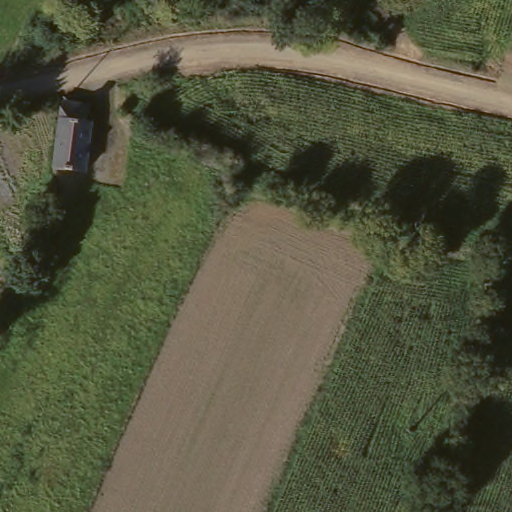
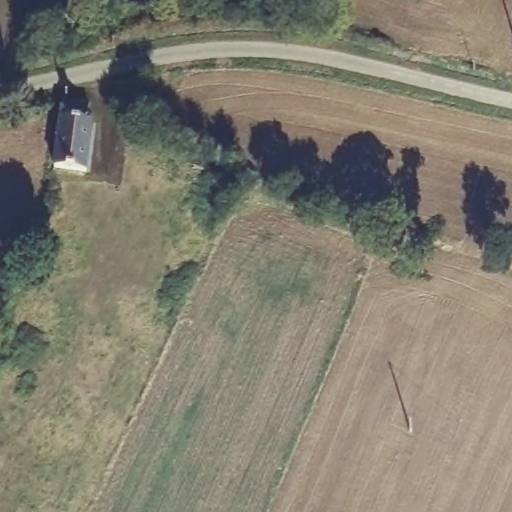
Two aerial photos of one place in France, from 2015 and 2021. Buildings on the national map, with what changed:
unchanged [(74,181),(44,172),(56,104),(82,109),(81,123),(85,124),(74,181)]

